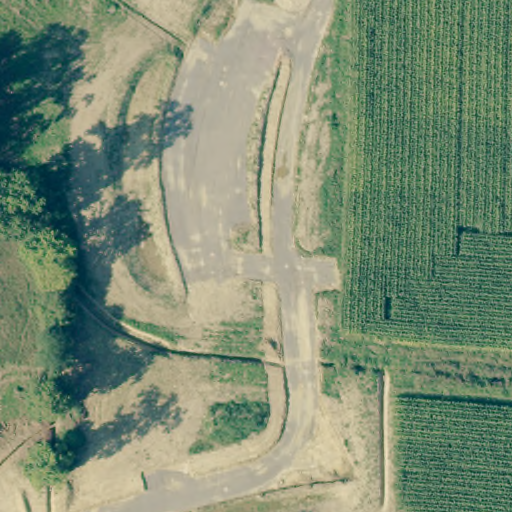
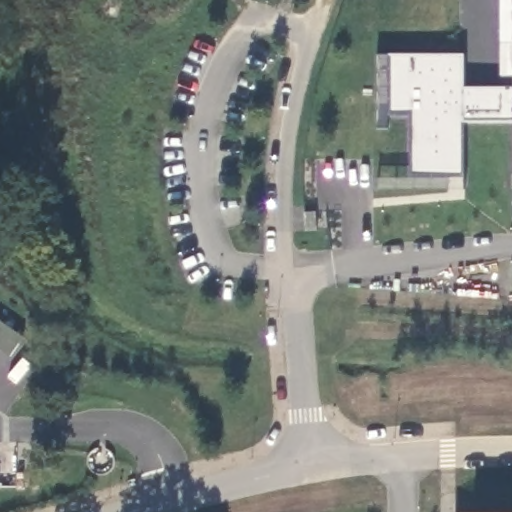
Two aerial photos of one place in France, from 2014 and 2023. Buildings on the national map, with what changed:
new [(502,78),(502,0),(512,0),(512,78),(502,78)]
new [(462,123),(463,176),(411,178),(410,115),(391,115),(391,57),(462,55),(462,89),(512,88),(512,123),(462,123)]
new [(12,358),(0,349),(0,321),(24,337),(12,358)]

